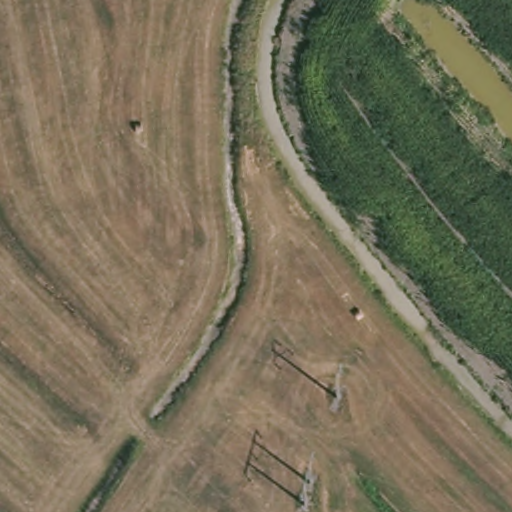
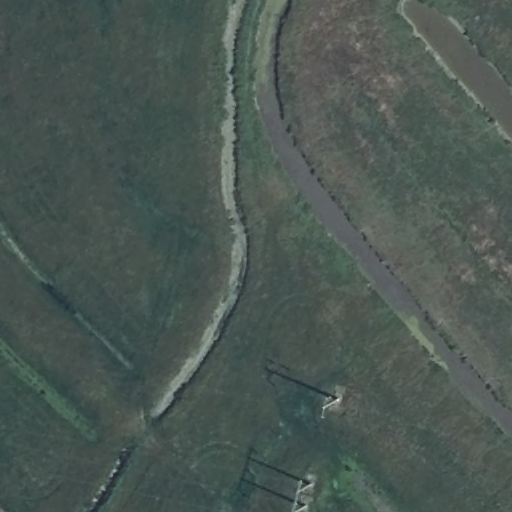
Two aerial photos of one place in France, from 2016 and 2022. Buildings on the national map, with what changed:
[]

